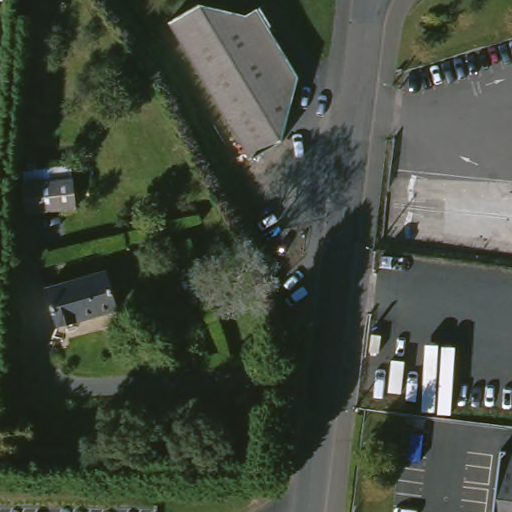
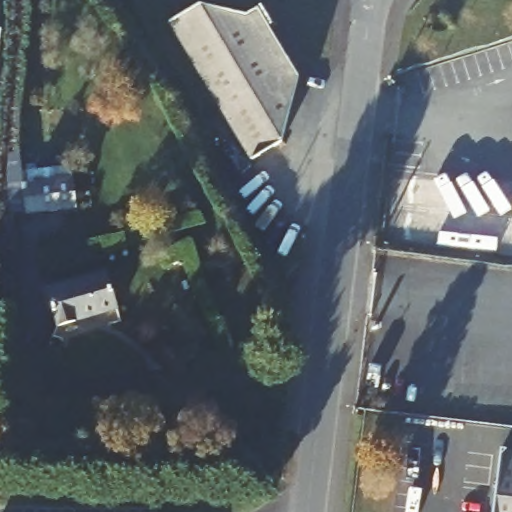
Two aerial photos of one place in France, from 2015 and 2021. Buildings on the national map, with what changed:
unchanged [(284,144),(251,162),(172,24),(203,6),(250,16),(261,11),(277,39),(301,80),(284,144)]
unchanged [(76,214),(26,219),(23,189),(73,183),(76,214)]
unchanged [(117,309),(57,326),(46,289),(106,273),(117,309)]
unchanged [(512,459),(512,512),(500,512),(506,458),(512,459)]

